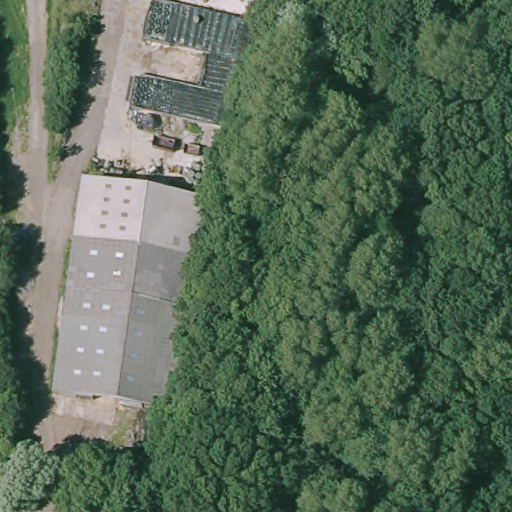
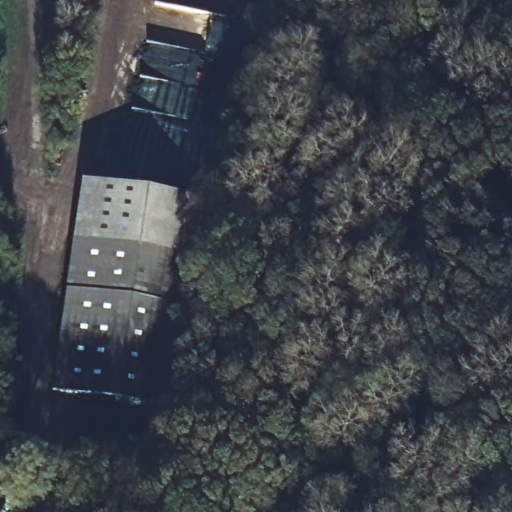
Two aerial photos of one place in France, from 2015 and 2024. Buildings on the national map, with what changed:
unchanged [(177,408),(54,392),(85,184),(208,200),(177,408)]

